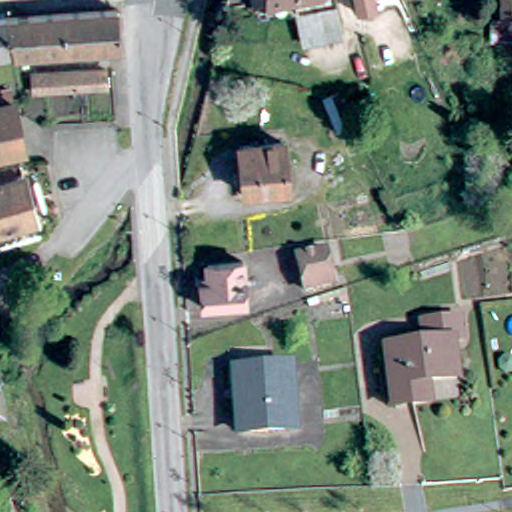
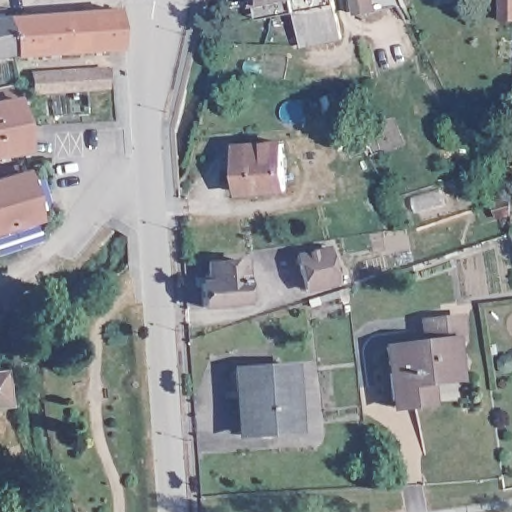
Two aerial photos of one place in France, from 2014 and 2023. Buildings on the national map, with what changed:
unchanged [(259,7),(257,0),(338,0),(345,41),(345,44),(309,51),(303,25),(302,18),(261,23),(259,7)]
unchanged [(404,7),(404,9),(356,17),(352,0),(402,0),(404,7)]
unchanged [(503,76),(501,37),(499,36),(499,22),(499,18),(506,18),(505,0),(512,0),(512,76),(503,76)]
unchanged [(113,54),(106,54),(8,61),(6,54),(0,25),(0,20),(109,13),(113,54)]
unchanged [(0,55),(0,25),(6,54),(0,55)]
unchanged [(110,84),(36,89),(35,73),(110,69),(110,84)]
unchanged [(341,128),(329,97),(341,91),(354,123),(341,128)]
unchanged [(20,103),(0,107),(0,98),(18,95),(20,103)]
unchanged [(24,159),(0,165),(0,109),(15,107),(24,159)]
unchanged [(284,148),(288,191),(246,195),(243,151),(284,148)]
unchanged [(14,175),(17,175),(18,181),(25,179),(36,230),(0,240),(0,178),(14,174),(14,175)]
unchanged [(498,200),(512,195),(512,213),(503,216),(498,200)]
unchanged [(331,257),(337,289),(307,296),(301,263),(331,257)]
unchanged [(216,285),(216,267),(248,263),(253,304),(209,307),(208,286),(216,285)]
unchanged [(424,350),(422,330),(459,325),(462,346),(453,347),(458,382),(427,386),(429,410),(392,414),(384,355),(424,350)]
unchanged [(238,374),(299,371),(302,435),(241,439),(238,374)]
unchanged [(3,413),(0,413),(0,378),(4,413),(3,413)]

